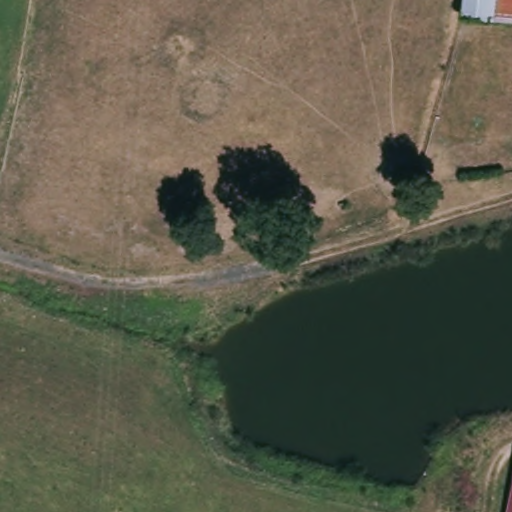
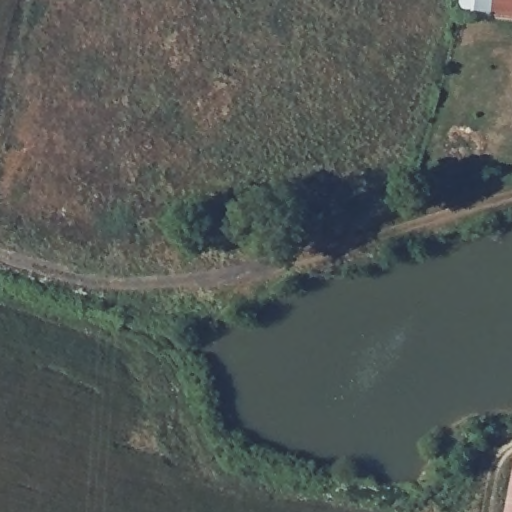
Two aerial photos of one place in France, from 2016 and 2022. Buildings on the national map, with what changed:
unchanged [(472,0),(472,19),(450,19),(450,0),(472,0)]
unchanged [(502,0),(502,20),(472,19),(472,0),(502,0)]
unchanged [(502,0),(512,0),(512,20),(502,20),(502,0)]

